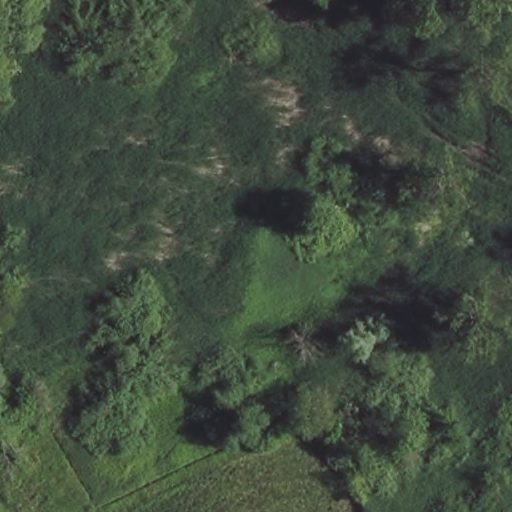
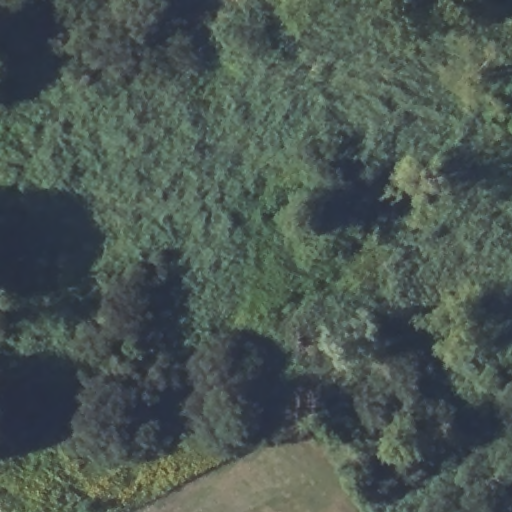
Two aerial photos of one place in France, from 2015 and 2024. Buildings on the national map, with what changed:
[]

